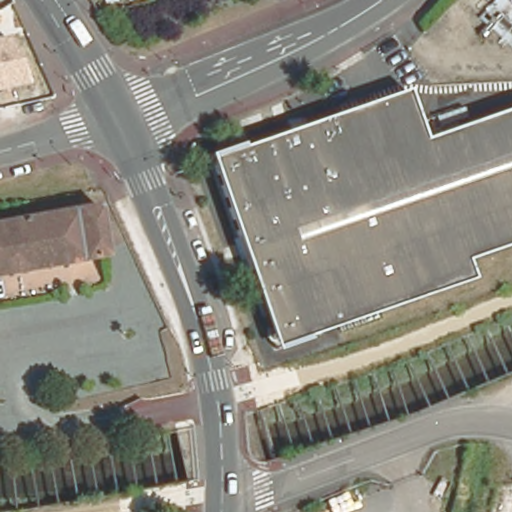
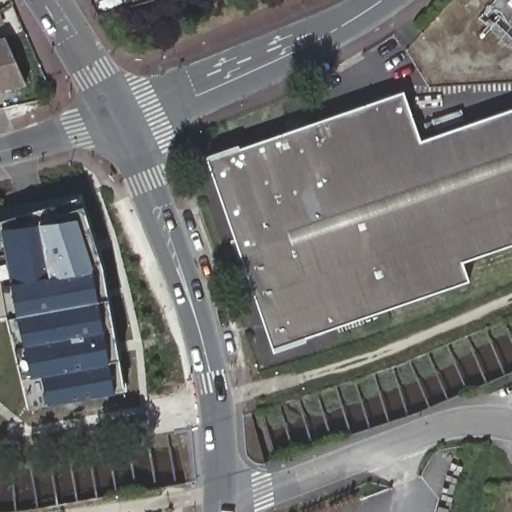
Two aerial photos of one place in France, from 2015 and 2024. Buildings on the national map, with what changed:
unchanged [(478,20),(498,0),(512,0),(512,52),(478,20)]
unchanged [(0,38),(7,36),(28,83),(0,89),(0,38)]
unchanged [(250,321),(264,316),(213,163),(222,150),(404,89),(420,136),(512,106),(512,243),(460,260),(466,278),(281,343),(271,337),(267,327),(253,332),(250,321)]
new [(103,260),(126,387),(31,406),(5,276),(0,241),(0,219),(87,202),(103,260)]
demolished [(92,212),(101,263),(76,267),(46,273),(0,282),(0,221),(90,203),(92,212)]
new [(13,315),(0,317),(0,241),(5,276),(13,315)]

